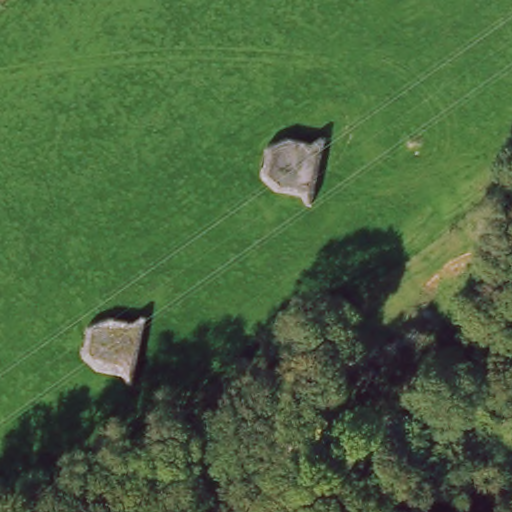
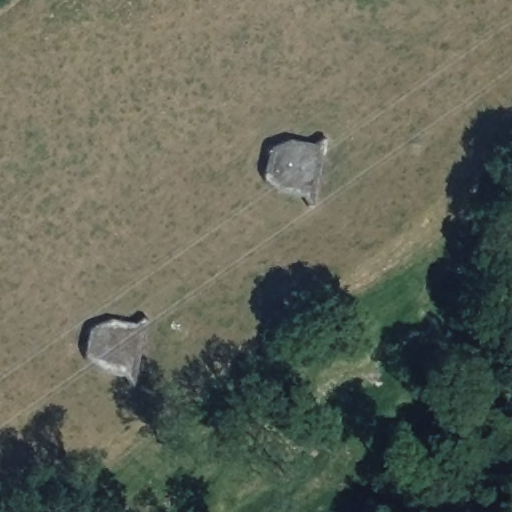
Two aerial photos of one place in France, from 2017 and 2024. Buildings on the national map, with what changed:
unchanged [(278,192),(262,178),(263,152),(284,143),(312,145),(308,195),(278,192)]
unchanged [(131,378),(84,362),(87,329),(107,321),(139,325),(131,378)]

